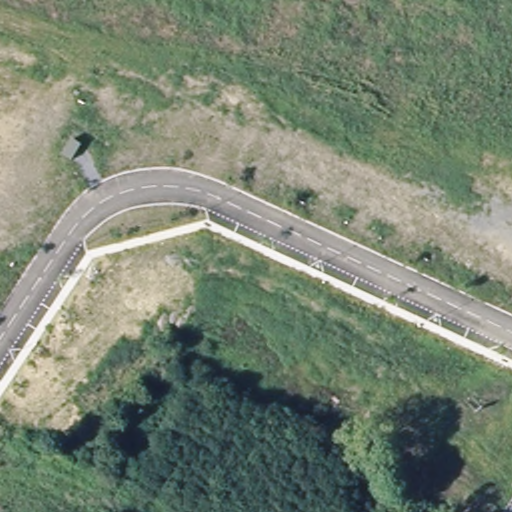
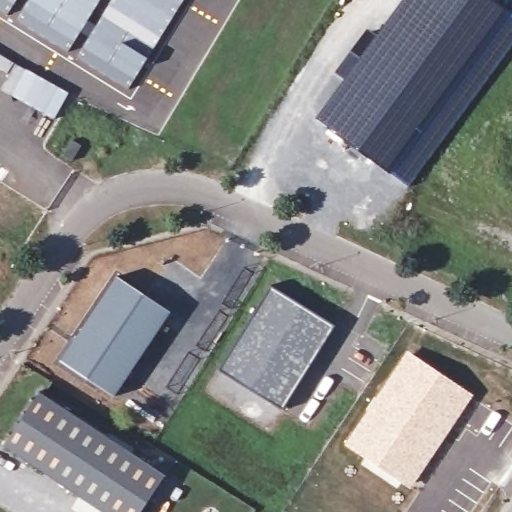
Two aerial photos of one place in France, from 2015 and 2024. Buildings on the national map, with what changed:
new [(129,89),(76,57),(84,42),(77,38),(69,51),(16,19),(18,12),(19,10),(14,6),(7,14),(0,9),(0,0),(185,0),(129,89)]
new [(386,170),(316,119),(345,79),(335,72),(367,28),(377,35),(402,0),(493,0),(505,9),(512,14),(512,46),(409,187),(386,170)]
new [(8,74),(0,69),(0,54),(15,63),(8,74)]
new [(8,74),(15,63),(69,93),(54,119),(1,89),(8,74)]
new [(125,278),(177,313),(121,399),(67,363),(125,278)]
new [(284,294),(335,326),(342,330),(288,415),(224,374),(277,290),(284,294)]
new [(407,350),(474,394),(411,488),(345,443),(407,350)]
new [(169,477),(145,512),(105,512),(7,445),(45,392),(169,477)]

